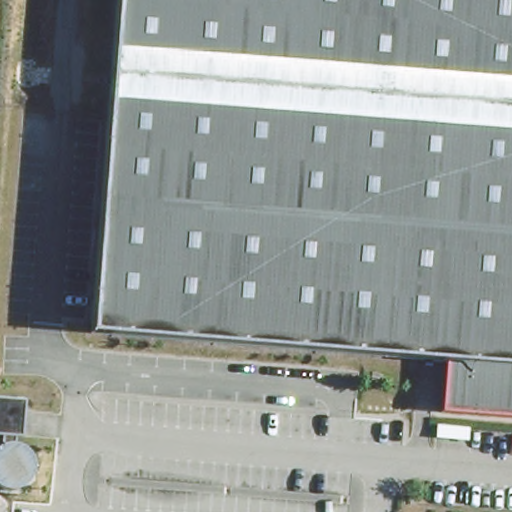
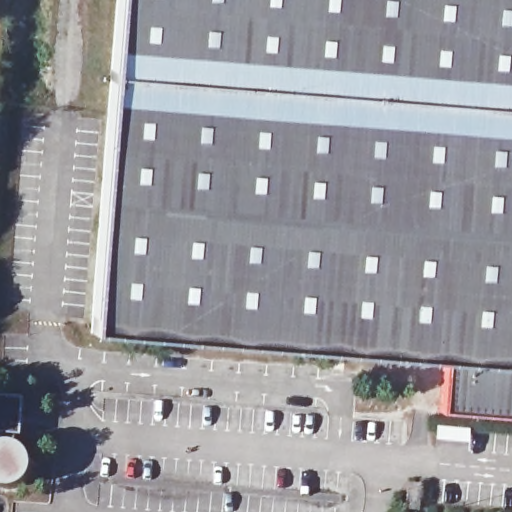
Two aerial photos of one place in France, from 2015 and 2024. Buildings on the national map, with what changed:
unchanged [(443,355),(90,325),(115,0),(512,0),(512,412),(437,405),(443,355)]
unchanged [(23,438),(32,444),(36,457),(35,472),(30,481),(17,487),(8,487),(0,484),(0,394),(24,397),(23,438)]

